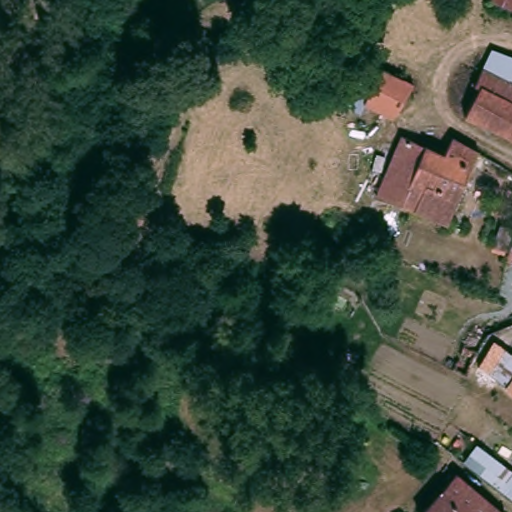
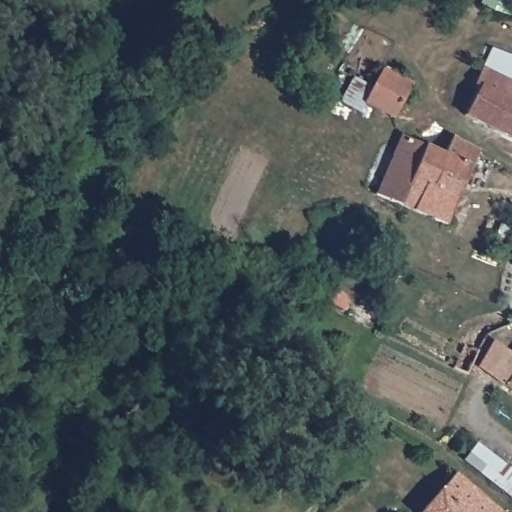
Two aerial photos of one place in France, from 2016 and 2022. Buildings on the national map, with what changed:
unchanged [(486,2),(487,0),(512,0),(512,12),(486,2)]
unchanged [(459,117),(473,89),(468,87),(477,69),(478,69),(485,51),(512,61),(512,63),(503,82),(512,86),(512,143),(459,117)]
unchanged [(408,85),(388,120),(358,105),(377,71),(408,85)]
unchanged [(478,154),(446,227),(375,196),(401,137),(424,147),(443,156),(452,139),(478,154)]
unchanged [(496,377),(478,363),(493,337),(512,351),(512,389),(496,377)]
unchanged [(512,476),(512,489),(506,497),(469,469),(482,453),(512,476)]
unchanged [(422,512),(443,487),(455,474),(501,512),(422,512)]

